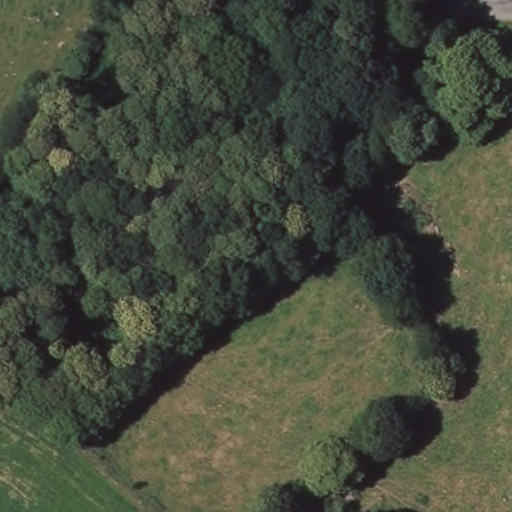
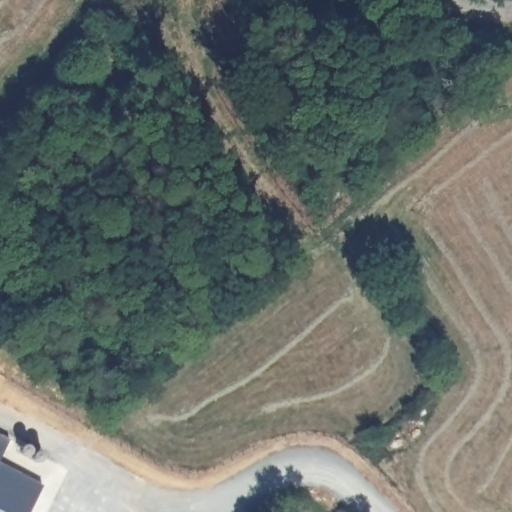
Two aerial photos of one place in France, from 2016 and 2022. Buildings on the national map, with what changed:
new [(10,440),(0,458),(0,435),(10,440)]
new [(44,486),(30,512),(0,512),(0,464),(44,486)]

